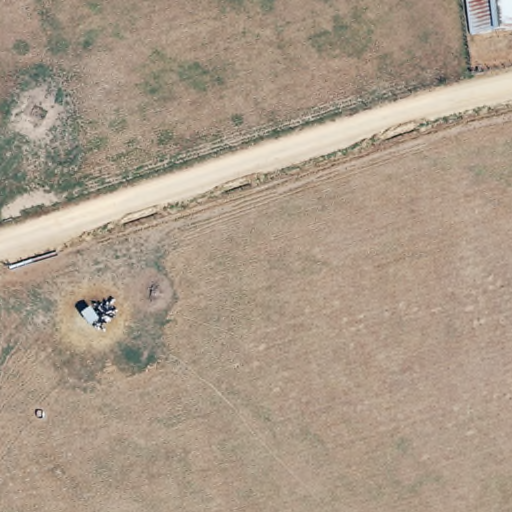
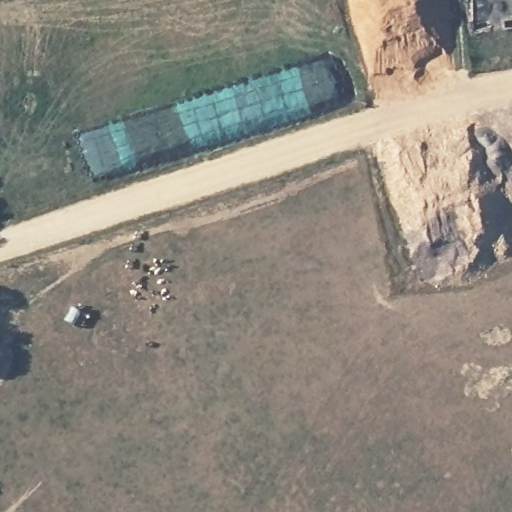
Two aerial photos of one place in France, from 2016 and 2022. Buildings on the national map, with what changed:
unchanged [(470,38),(465,0),(512,0),(512,35),(470,38)]

